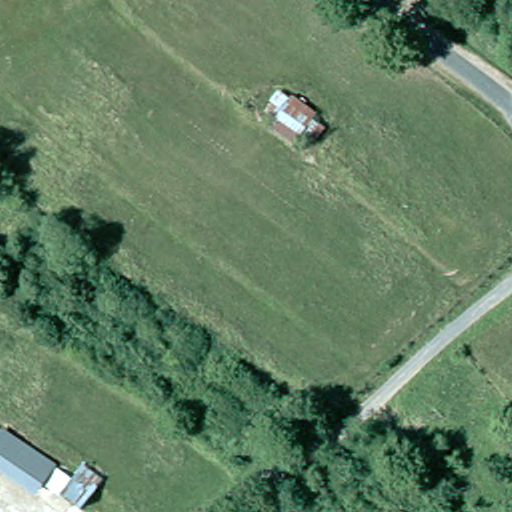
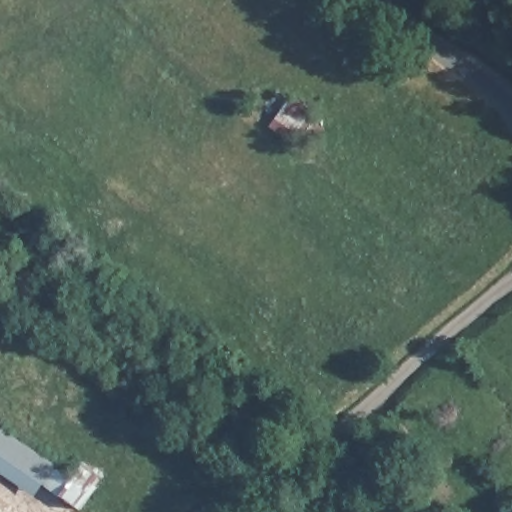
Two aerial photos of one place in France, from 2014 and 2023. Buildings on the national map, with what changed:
unchanged [(294,133),(265,124),(267,111),(260,110),(277,84),(310,101),(306,108),(331,122),(316,143),(294,133)]
unchanged [(39,485),(7,465),(25,444),(67,470),(82,460),(105,473),(77,505),(39,485)]

